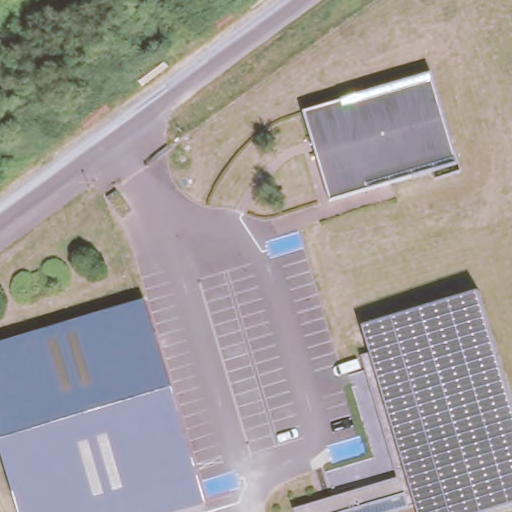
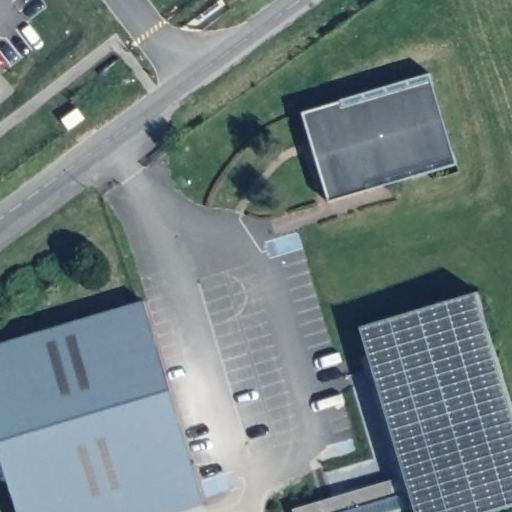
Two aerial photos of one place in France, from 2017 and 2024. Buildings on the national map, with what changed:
unchanged [(302,115),(427,76),(455,165),(327,201),(302,115)]
unchanged [(475,294),(512,419),(512,505),(490,512),(295,512),(294,510),(402,470),(362,328),(475,294)]
unchanged [(0,343),(143,301),(205,504),(178,512),(17,512),(0,455),(0,343)]

